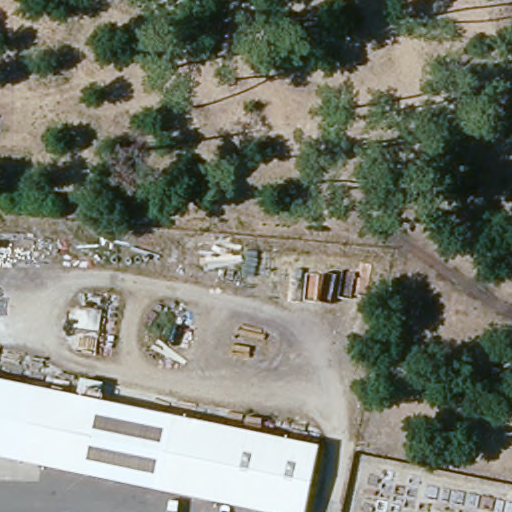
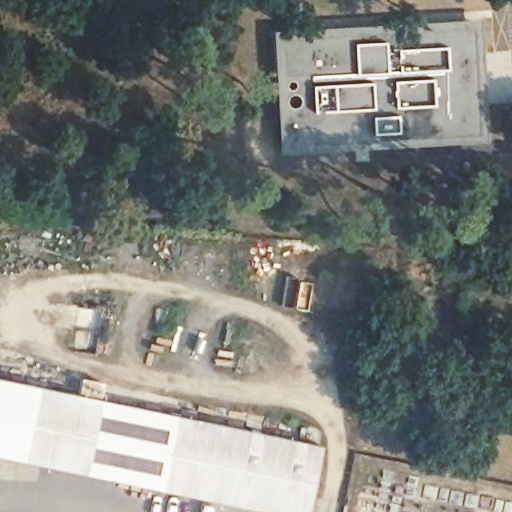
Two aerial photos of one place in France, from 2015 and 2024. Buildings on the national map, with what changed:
new [(478,19),(487,142),(277,152),(272,30),(478,19)]
unchanged [(310,448),(298,512),(247,512),(118,486),(0,461),(0,386),(14,389),(310,448)]

